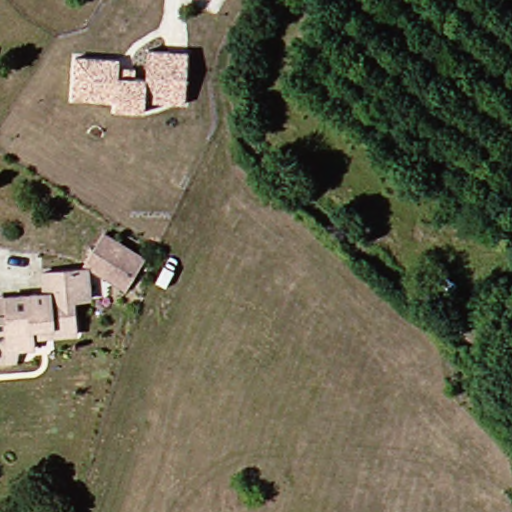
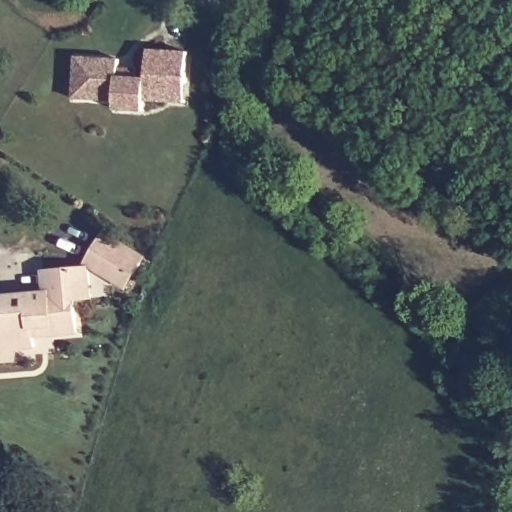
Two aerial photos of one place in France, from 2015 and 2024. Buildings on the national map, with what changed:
unchanged [(191,50),(190,104),(151,104),(150,115),(112,112),(112,100),(76,99),(77,55),(124,58),(124,64),(149,64),(149,49),(191,50)]
unchanged [(112,278),(88,263),(107,233),(148,258),(138,275),(130,288),(112,278)]
unchanged [(13,299),(46,295),(47,272),(93,273),(95,303),(77,304),(78,338),(55,340),(36,340),(36,348),(35,352),(15,352),(14,365),(0,365),(0,300),(13,299)]

